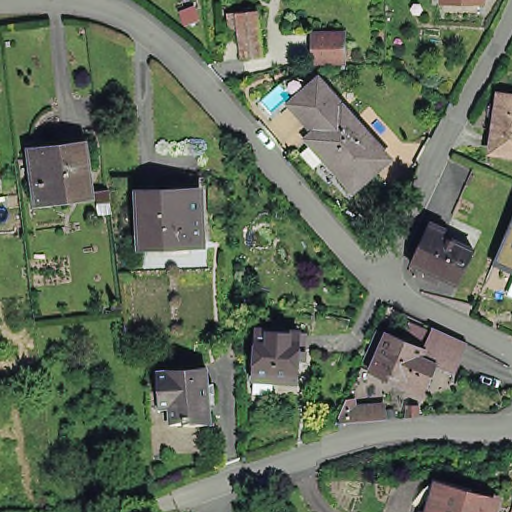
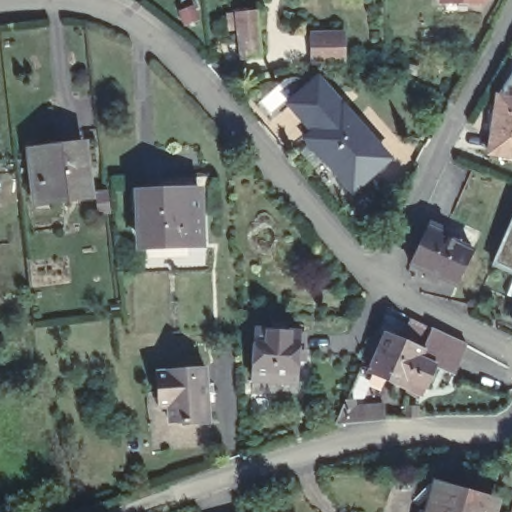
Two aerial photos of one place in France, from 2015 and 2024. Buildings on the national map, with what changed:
unchanged [(475,4),(436,4),(436,0),(475,0),(475,4)]
unchanged [(255,10),(261,59),(242,61),(237,27),(230,27),(228,13),(255,10)]
unchanged [(309,28),(346,28),(345,65),(311,66),(309,28)]
unchanged [(316,75),(377,143),(342,175),(306,136),(315,128),(289,99),(316,75)]
unchanged [(495,151),(501,92),(512,94),(512,152),(495,151)]
unchanged [(75,142),(81,190),(30,195),(24,148),(75,142)]
unchanged [(98,186),(102,208),(90,210),(87,188),(98,186)]
unchanged [(192,196),(194,244),(135,247),(134,198),(192,196)]
unchanged [(453,283),(409,263),(425,227),(428,221),(442,228),(440,234),(469,247),(453,283)]
unchanged [(512,226),(512,270),(495,263),(512,226)]
unchanged [(410,377),(406,386),(371,370),(388,332),(404,339),(411,324),(431,332),(433,328),(467,344),(464,352),(455,374),(435,364),(426,384),(410,377)]
unchanged [(304,335),(301,383),(258,381),(260,334),(304,335)]
unchanged [(196,417),(188,418),(188,416),(174,416),(173,401),(164,402),(163,387),(162,368),(210,365),(213,412),(213,416),(196,417)]
unchanged [(327,426),(343,398),(357,395),(357,402),(384,399),(382,422),(327,426)]
unchanged [(435,508),(442,483),(499,499),(495,512),(422,512),(424,505),(435,508)]

